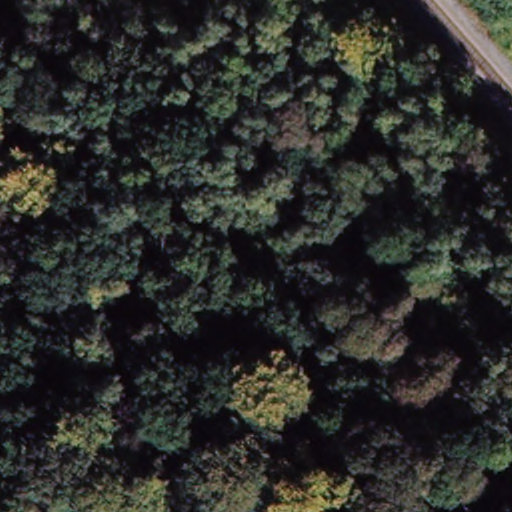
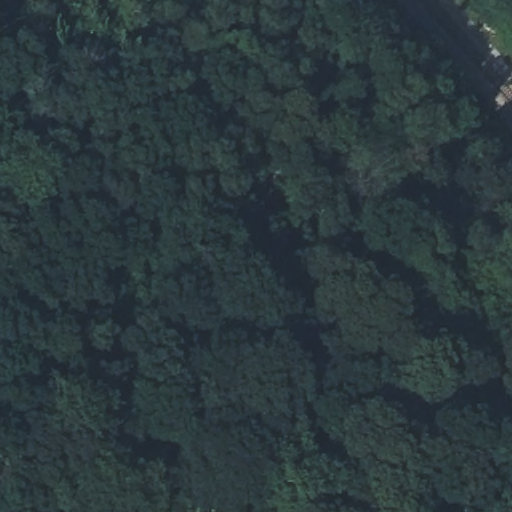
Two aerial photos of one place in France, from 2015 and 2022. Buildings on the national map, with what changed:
[]

